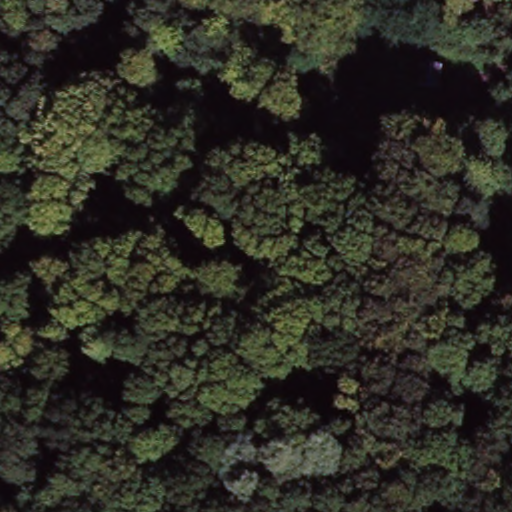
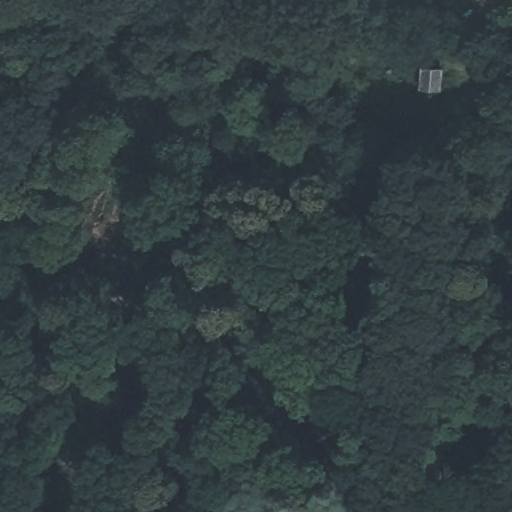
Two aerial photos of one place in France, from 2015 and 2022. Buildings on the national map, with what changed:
unchanged [(442,87),(422,82),(428,62),(447,68),(442,87)]

